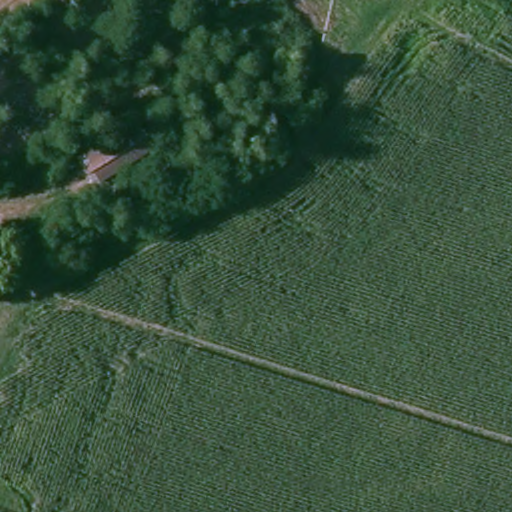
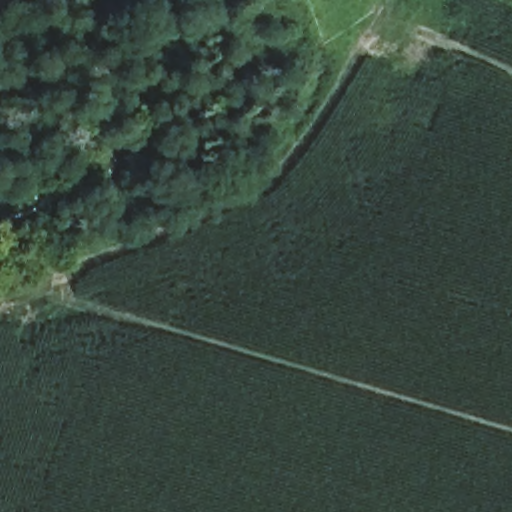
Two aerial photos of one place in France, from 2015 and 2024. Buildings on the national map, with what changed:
unchanged [(53,173),(141,119),(158,149),(69,204),(53,173)]

